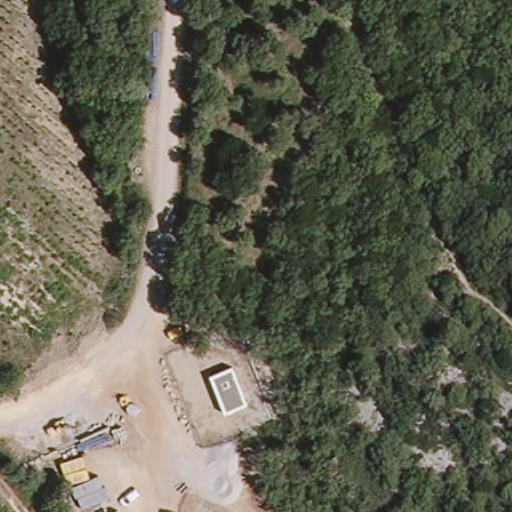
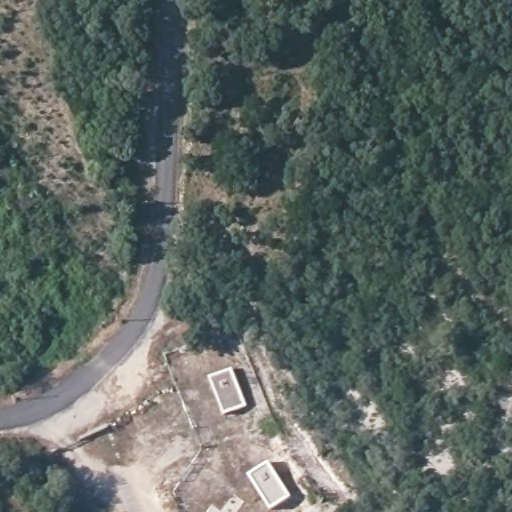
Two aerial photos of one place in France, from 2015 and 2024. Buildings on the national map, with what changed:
unchanged [(209,378),(232,368),(246,405),(225,415),(209,378)]
new [(249,475),(268,462),(288,495),(270,507),(249,475)]

